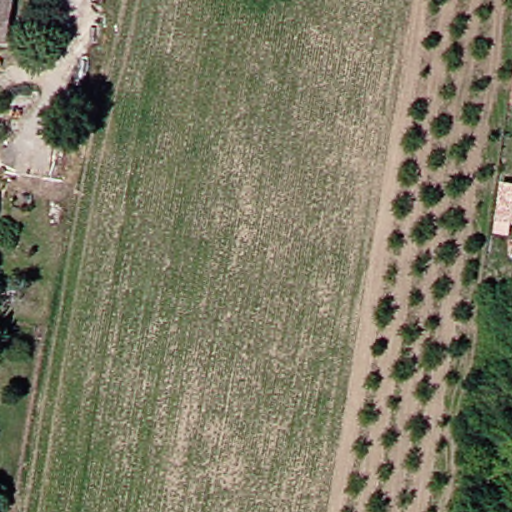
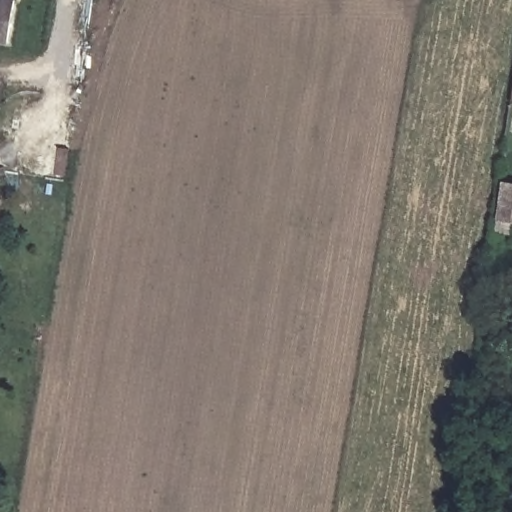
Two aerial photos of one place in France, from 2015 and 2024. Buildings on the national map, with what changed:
unchanged [(17,0),(10,42),(0,40),(0,0),(17,0)]
unchanged [(512,213),(499,211),(503,190),(512,191),(512,213)]

